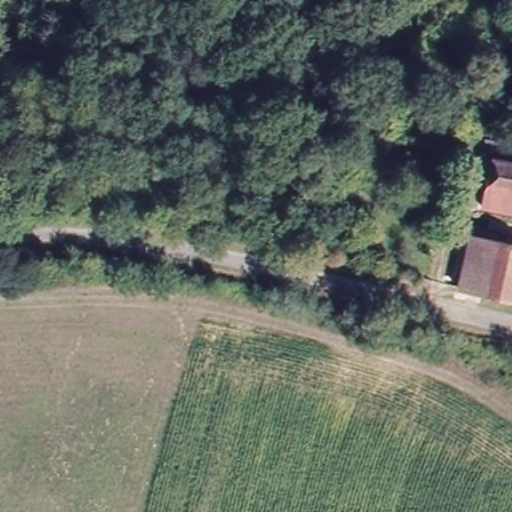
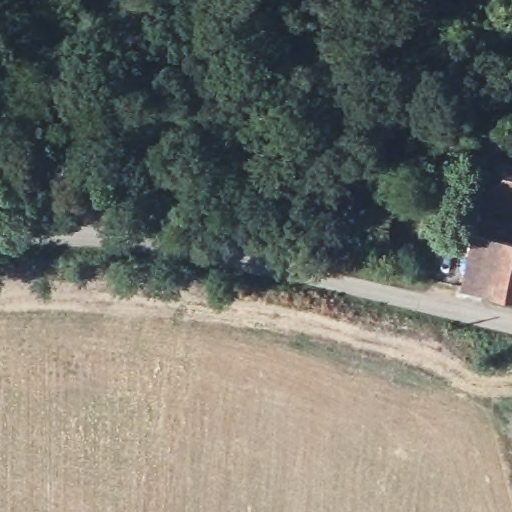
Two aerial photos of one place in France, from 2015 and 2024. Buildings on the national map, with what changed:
unchanged [(487,204),(496,154),(512,158),(512,209),(487,204)]
unchanged [(483,230),(512,235),(512,309),(468,299),(480,245),(483,230)]

